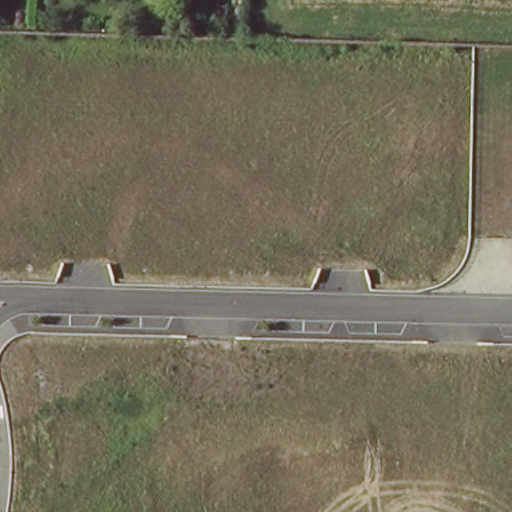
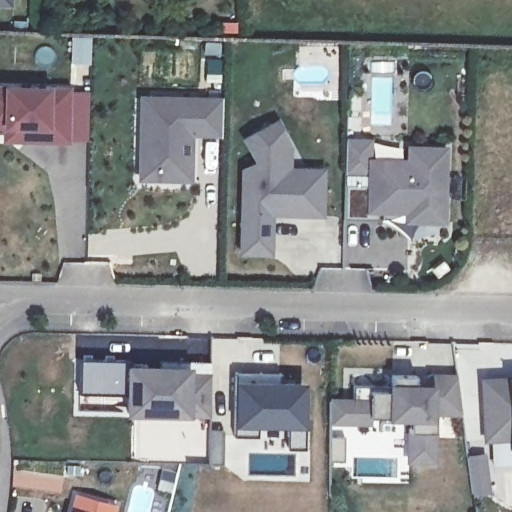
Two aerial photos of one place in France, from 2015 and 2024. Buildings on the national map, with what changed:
new [(11,8),(0,8),(0,0),(12,0),(11,8)]
new [(6,126),(0,126),(0,87),(72,88),(72,92),(89,93),(88,143),(71,143),(71,146),(26,144),(6,143),(6,126)]
new [(140,151),(142,98),(221,99),(220,134),(182,133),(182,147),(190,147),(189,179),(155,178),(140,178),(140,151)]
new [(241,171),(255,163),(242,139),(274,122),(292,149),(293,171),(321,172),(321,216),(272,215),(271,253),(240,253),(241,171)]
new [(374,161),(370,161),(368,189),(347,189),(349,139),(374,140),(374,161)]
new [(347,189),(368,189),(370,161),(374,161),(410,162),(410,149),(451,149),(450,228),(407,228),(408,218),(381,217),(382,225),(347,223),(347,189)]
new [(191,418),(131,415),(132,399),(81,397),(82,363),(133,362),(132,371),(163,372),(163,363),(214,364),(213,378),(212,418),(191,418)]
new [(352,398),(351,385),(370,385),(367,391),(387,391),(387,384),(387,376),(425,376),(425,374),(455,374),(460,418),(435,419),(435,432),(437,466),(404,465),(404,432),(408,432),(408,422),(385,422),(385,418),(367,418),(368,425),(327,425),(326,397),(352,398)]
new [(512,377),(512,459),(510,459),(510,441),(482,443),(479,378),(505,377),(512,377)]
new [(311,385),(310,431),(237,430),(238,383),(311,385)]
new [(347,464),(331,464),(331,439),(347,439),(347,464)]
new [(491,494),(475,496),(470,459),(486,458),(491,494)]
new [(115,506),(114,512),(68,512),(73,495),(115,506)]

